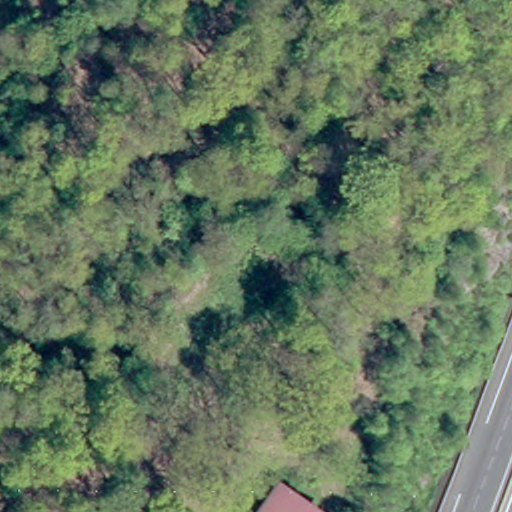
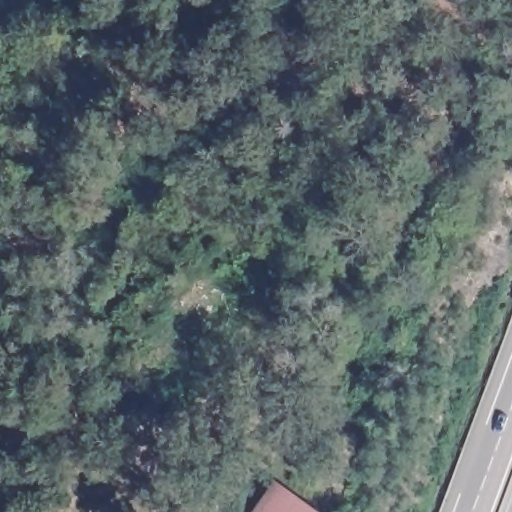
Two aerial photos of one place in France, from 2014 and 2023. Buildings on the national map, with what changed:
unchanged [(314,512),(256,512),(277,478),(291,487),(287,494),(314,512)]

